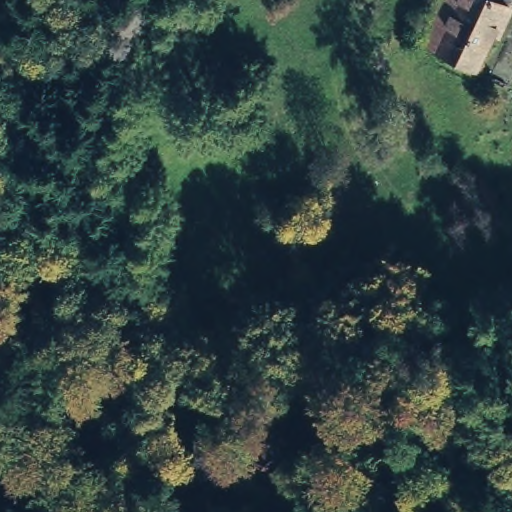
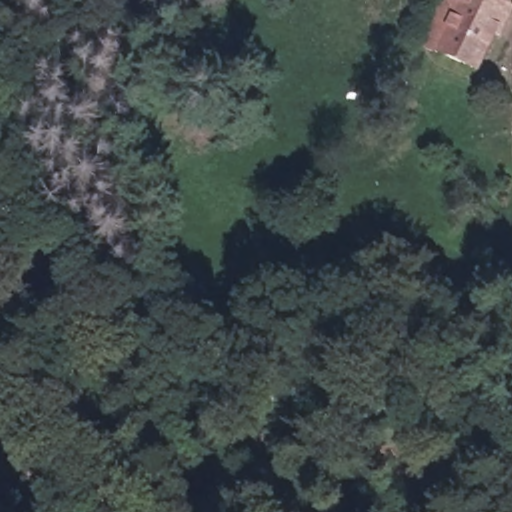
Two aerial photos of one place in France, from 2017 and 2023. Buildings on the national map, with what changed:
unchanged [(505,0),(473,68),(431,48),(417,42),(438,0),(505,0)]

